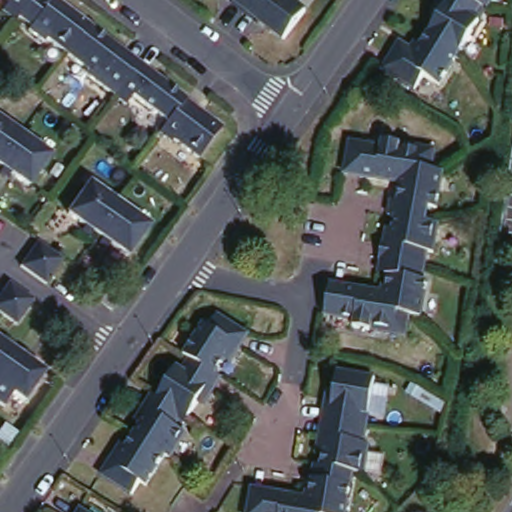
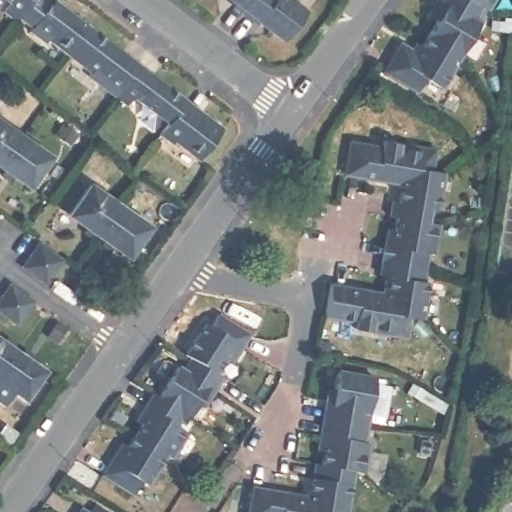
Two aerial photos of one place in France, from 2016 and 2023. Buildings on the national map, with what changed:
unchanged [(61,0),(67,0),(126,44),(121,50),(156,77),(160,72),(191,95),(188,100),(202,111),(205,106),(226,123),(202,154),(176,135),(175,138),(163,129),(171,119),(137,92),(132,100),(94,71),(97,66),(54,33),(50,36),(36,25),(39,23),(26,13),(24,16),(10,4),(13,0),(58,0),(60,1),(61,0)]
unchanged [(286,41),(235,0),(291,0),(308,14),(286,41)]
unchanged [(408,46),(417,42),(435,14),(442,2),(440,0),(485,0),(482,5),(477,3),(467,17),(473,20),(435,83),(420,74),(412,86),(381,66),(398,40),(408,46)]
unchanged [(31,187),(21,179),(0,163),(0,118),(54,158),(31,187)]
unchanged [(377,144),(379,138),(427,145),(424,166),(436,168),(431,205),(425,204),(423,219),(432,220),(428,249),(422,249),(418,278),(423,278),(418,317),(405,315),(402,334),(353,326),(355,318),(325,313),(330,284),(355,289),(358,289),(357,296),(366,297),(366,301),(374,303),(375,299),(385,301),(387,294),(385,294),(385,290),(386,282),(387,274),(382,273),(388,228),(389,222),(390,214),(385,214),(387,202),(392,202),(394,187),(394,185),(399,186),(400,170),(374,166),(373,173),(367,172),(342,168),(346,140),(377,144)]
unchanged [(147,223),(125,253),(112,243),(83,222),(68,210),(90,182),(147,223)]
unchanged [(25,260),(35,247),(39,242),(62,259),(45,283),(21,265),(25,260)]
unchanged [(10,285),(35,302),(17,325),(0,313),(0,299),(7,289),(10,285)]
unchanged [(106,292),(116,299),(111,307),(106,304),(101,300),(106,292)]
unchanged [(112,447),(116,450),(126,435),(143,410),(152,397),(147,394),(155,382),(160,385),(180,356),(184,359),(194,345),(187,341),(206,312),(211,314),(220,300),(250,320),(242,332),(238,329),(230,341),(218,360),(224,364),(215,377),(210,373),(202,386),(190,404),(186,403),(177,416),(187,422),(173,444),(169,442),(149,472),(142,468),(135,479),(104,459),(112,447)]
unchanged [(35,366),(49,376),(26,406),(15,397),(6,409),(0,405),(0,341),(3,344),(35,366)]
unchanged [(258,490),(279,493),(286,494),(286,499),(317,504),(318,496),(316,496),(316,491),(320,473),(321,463),(326,463),(327,456),(328,449),(338,394),(343,394),(348,367),(380,373),(370,438),(375,439),(370,472),(358,469),(351,512),(255,512),(258,490)]
unchanged [(89,505),(99,512),(84,512),(89,505)]

